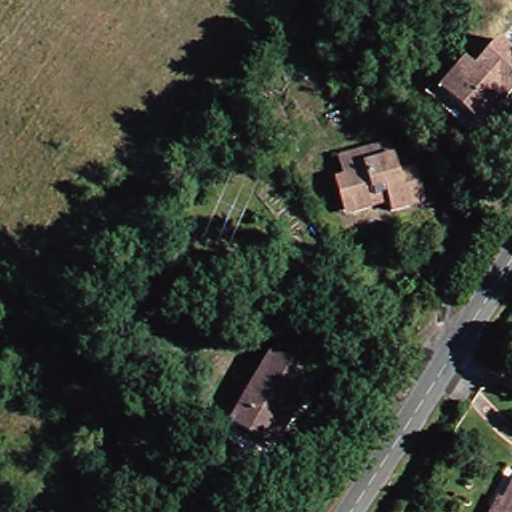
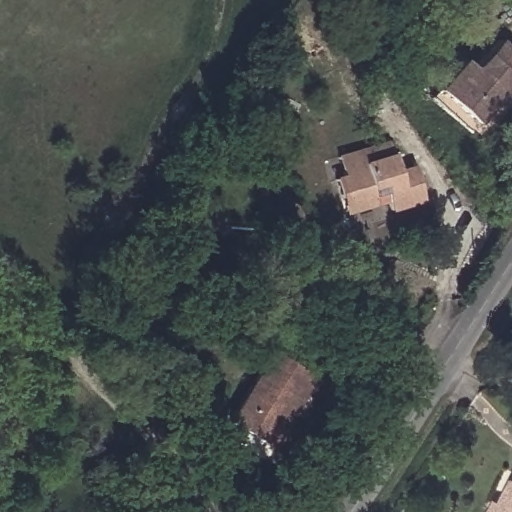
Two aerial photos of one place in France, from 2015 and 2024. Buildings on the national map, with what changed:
unchanged [(512,48),(512,94),(511,95),(512,96),(512,103),(487,131),(480,125),(473,133),(434,95),(452,76),(467,59),(476,66),(501,38),(512,48)]
unchanged [(340,175),(350,173),(343,153),(393,138),(400,161),(420,156),(428,190),(398,200),(352,214),(349,205),(340,175)]
unchanged [(268,436),(233,413),(273,347),(316,373),(307,388),(275,440),(268,436)]
unchanged [(501,502),(512,477),(512,512),(497,512),(498,509),(501,502)]

